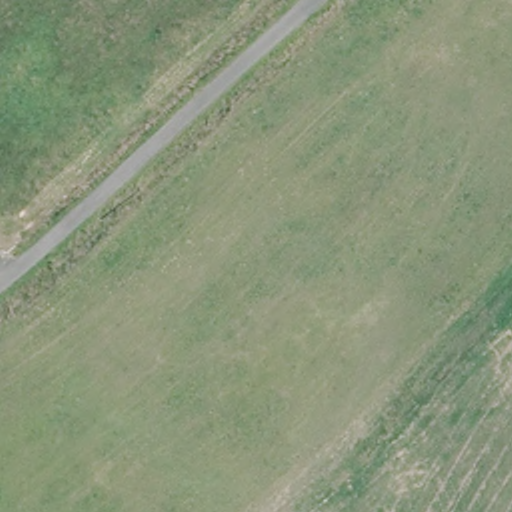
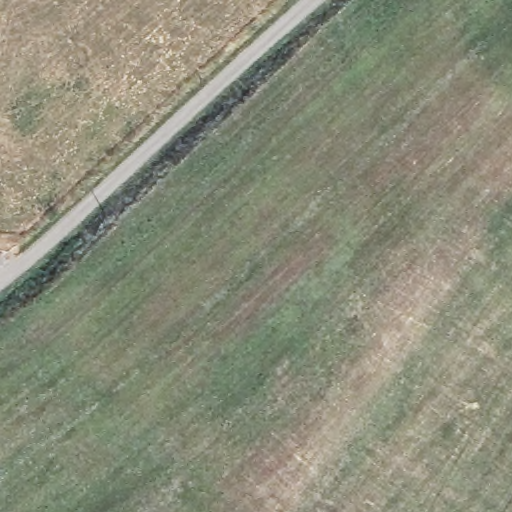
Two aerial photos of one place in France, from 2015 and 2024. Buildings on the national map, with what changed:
[]

